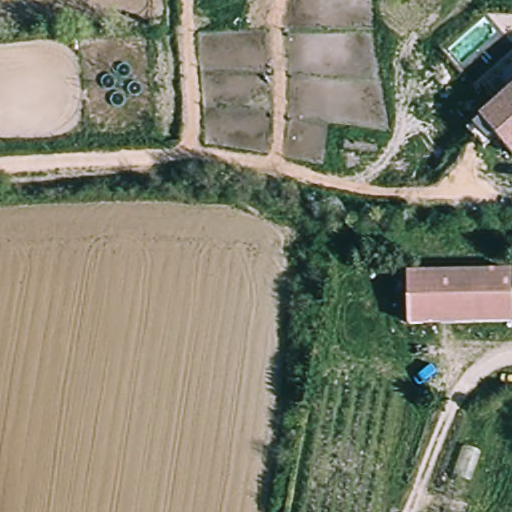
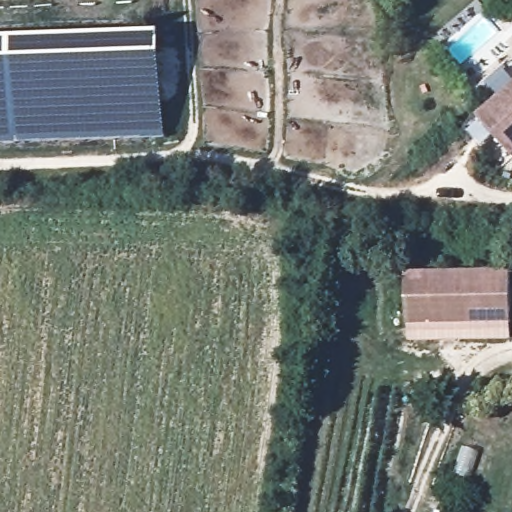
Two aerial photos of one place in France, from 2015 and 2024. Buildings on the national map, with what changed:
new [(0,145),(0,37),(161,31),(167,138),(0,145)]
unchanged [(463,118),(478,109),(512,87),(512,148),(504,153),(491,130),(476,139),(463,118)]
unchanged [(512,272),(512,289),(511,323),(411,322),(412,272),(512,272)]

